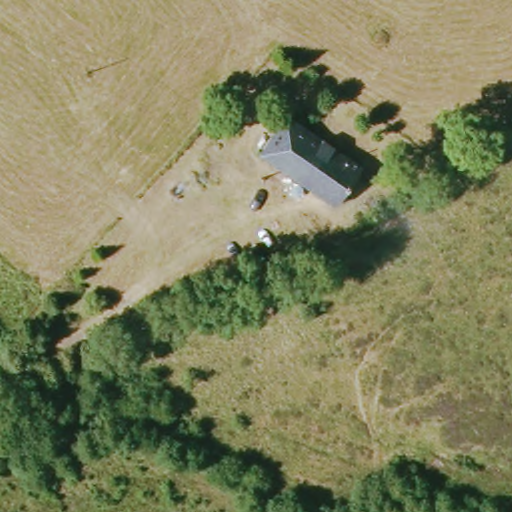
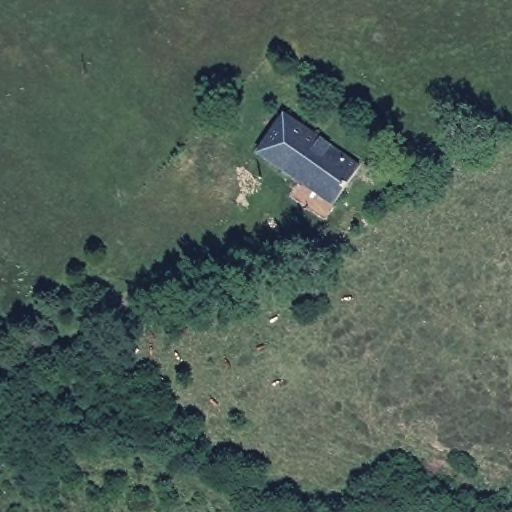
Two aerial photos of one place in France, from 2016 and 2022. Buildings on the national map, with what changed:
unchanged [(335,206),(256,156),(279,118),(360,167),(335,206)]

